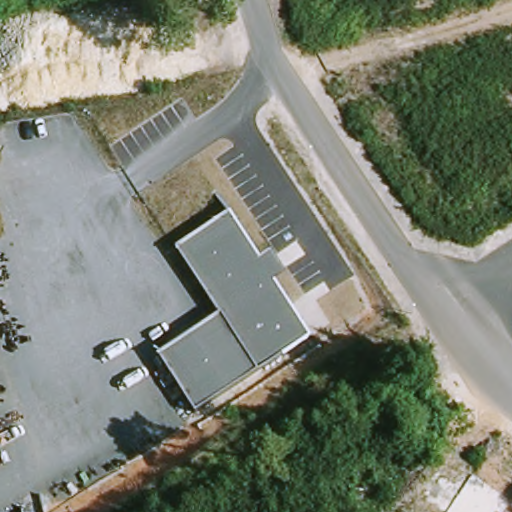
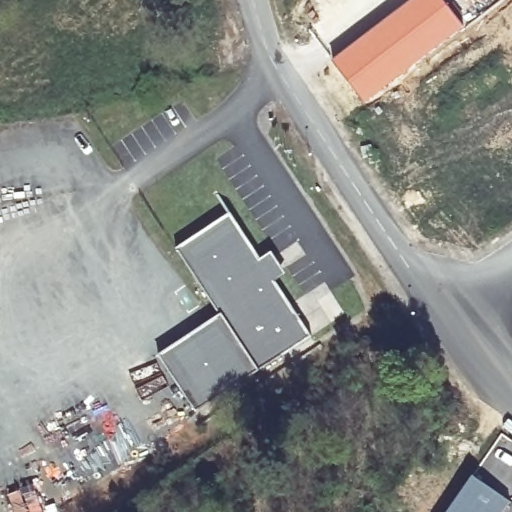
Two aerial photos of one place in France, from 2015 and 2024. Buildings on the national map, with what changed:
unchanged [(293,3),(292,0),(303,0),(303,1),(293,3)]
new [(442,0),(462,25),(363,103),(332,60),(411,0),(442,0)]
unchanged [(177,248),(231,213),(261,258),(272,251),(287,274),(277,282),(312,335),(257,369),(197,410),(162,353),(222,313),(177,248)]
new [(502,512),(448,512),(472,476),(509,502),(502,512)]

